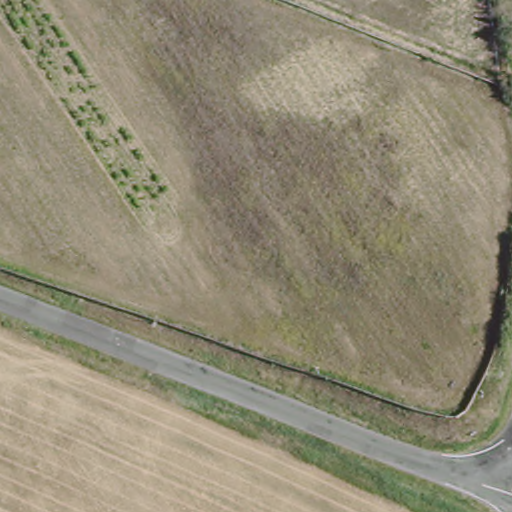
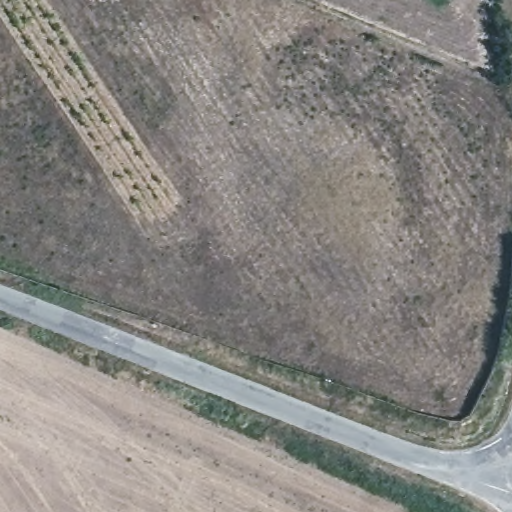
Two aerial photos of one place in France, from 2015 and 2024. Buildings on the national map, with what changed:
[]

